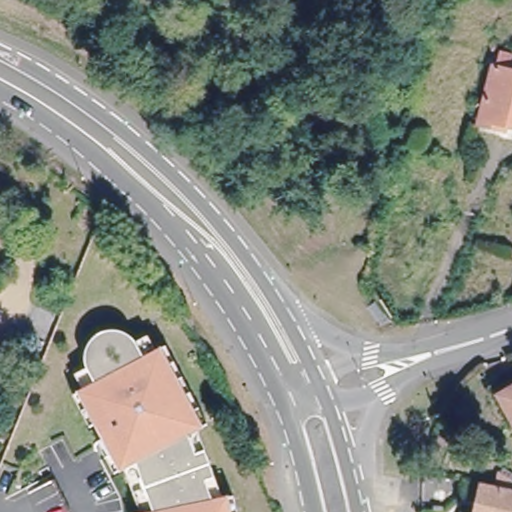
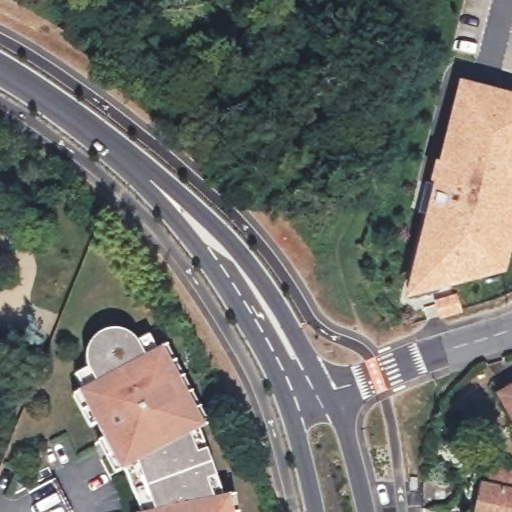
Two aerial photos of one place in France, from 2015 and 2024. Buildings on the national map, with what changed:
demolished [(503,131),(482,125),(497,66),(512,70),(512,127),(505,125),(503,131)]
new [(512,243),(503,276),(403,301),(432,186),(427,185),(433,162),(437,163),(458,82),(512,97),(512,243)]
unchanged [(129,469),(127,470),(117,475),(110,460),(101,442),(94,428),(85,413),(76,395),(87,390),(79,375),(91,369),(89,360),(89,354),(92,347),(96,340),(100,336),(111,333),(124,334),(128,337),(134,341),(139,345),(151,339),(159,355),(169,350),(178,367),(186,382),(194,397),(201,412),(210,429),(201,433),(209,456),(215,476),(222,498),(234,496),(237,512),(143,512),(136,490),(129,469)]
unchanged [(512,406),(506,396),(512,393),(512,406)]
demolished [(49,481),(60,505),(63,512),(36,512),(27,494),(49,481)]
unchanged [(512,495),(512,512),(485,512),(491,489),(512,495)]

